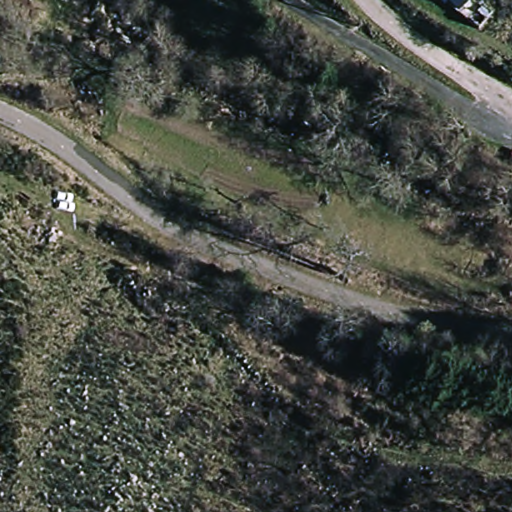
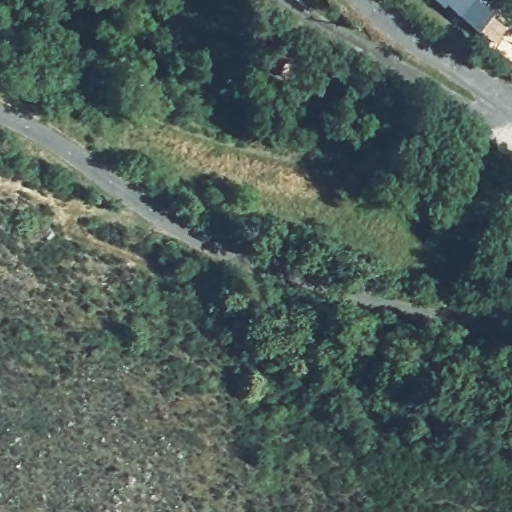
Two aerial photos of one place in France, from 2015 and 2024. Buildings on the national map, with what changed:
unchanged [(460,15),(443,0),(470,0),(460,15)]

